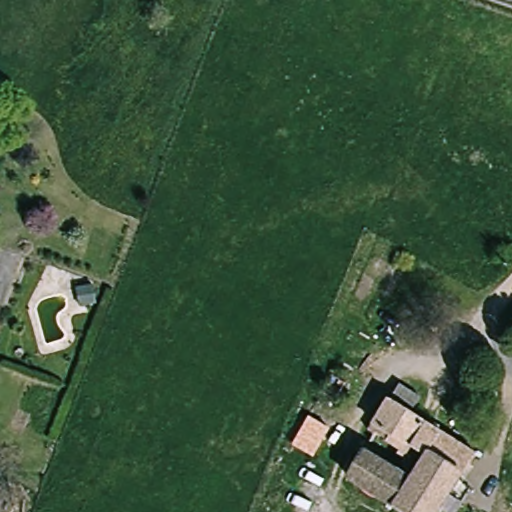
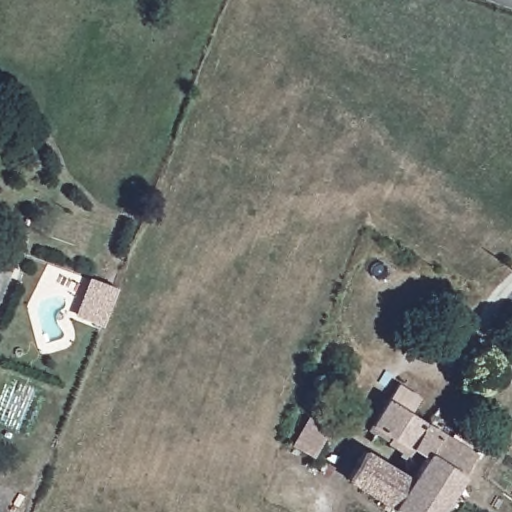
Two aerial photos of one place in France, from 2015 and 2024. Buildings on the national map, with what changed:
new [(76,317),(86,291),(90,279),(115,289),(110,300),(100,326),(76,317)]
unchanged [(340,390),(338,389),(326,382),(334,368),(347,375),(340,390)]
unchanged [(480,452),(439,512),(407,512),(347,480),(365,448),(413,475),(428,451),(373,424),(389,396),(480,452)]
unchanged [(294,445),(310,415),(330,426),(315,454),(294,445)]

